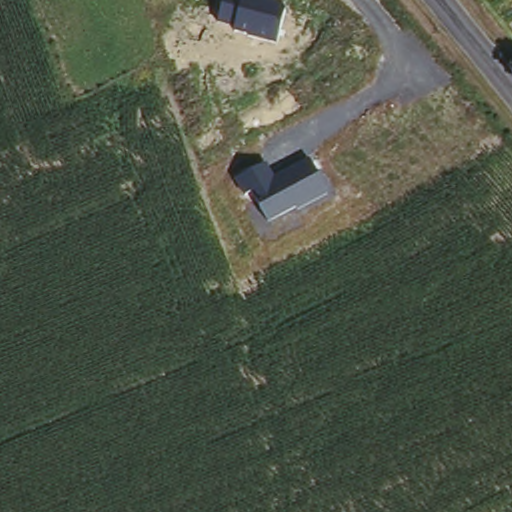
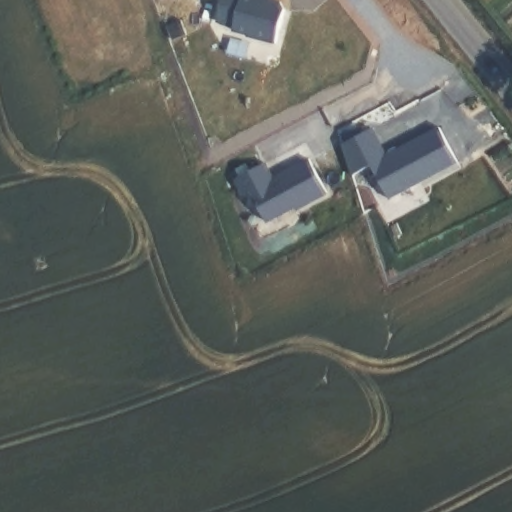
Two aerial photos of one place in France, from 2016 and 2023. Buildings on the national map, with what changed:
unchanged [(288,5),(280,41),(238,28),(243,0),(272,0),(288,5)]
new [(372,131),(386,158),(439,130),(458,166),(389,202),(371,168),(352,178),(342,147),(372,131)]
unchanged [(264,168),(272,180),(306,161),(325,199),(266,228),(260,216),(253,219),(234,184),(264,168)]

